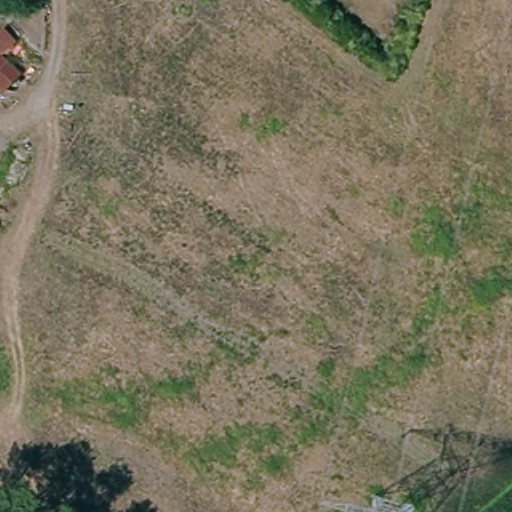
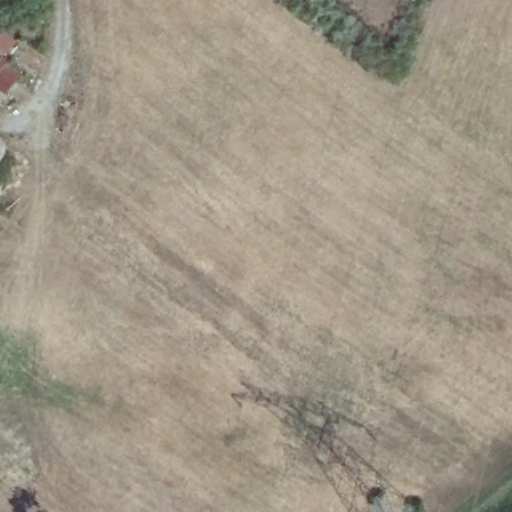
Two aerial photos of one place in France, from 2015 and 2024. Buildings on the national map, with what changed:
unchanged [(2,31),(15,45),(0,59),(0,33),(2,31)]
unchanged [(19,77),(0,96),(0,62),(19,77)]

